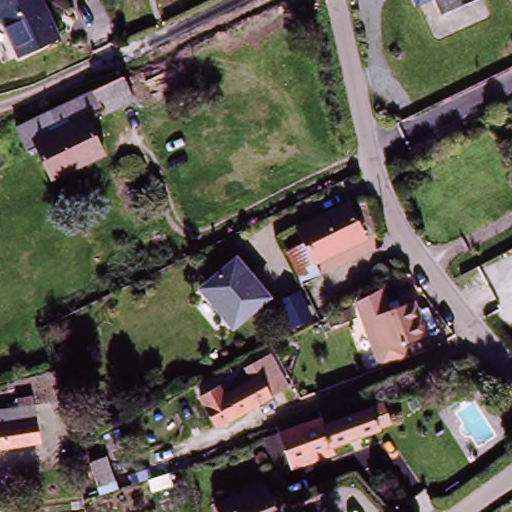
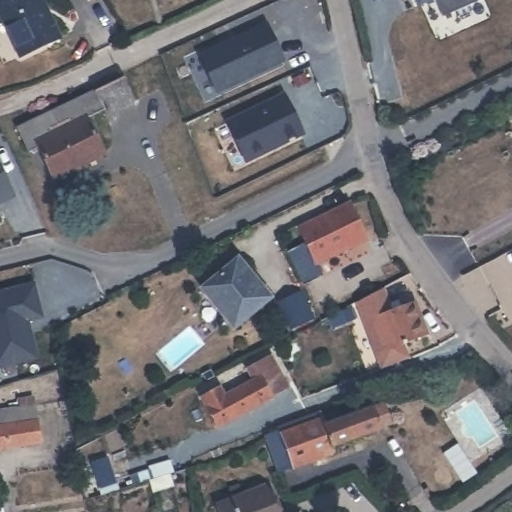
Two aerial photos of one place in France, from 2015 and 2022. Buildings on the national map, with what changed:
unchanged [(0,9),(0,0),(1,0),(42,0),(61,40),(24,58),(0,9)]
unchanged [(418,1),(418,0),(420,0),(418,1)]
new [(231,44),(267,27),(283,62),(217,92),(202,58),(223,48),(231,44)]
unchanged [(52,177),(38,145),(27,149),(17,124),(125,74),(136,99),(106,113),(103,107),(87,115),(105,153),(52,177)]
new [(284,97),(303,135),(281,145),(272,149),(272,150),(247,162),(228,124),(284,97)]
new [(0,204),(0,165),(15,197),(0,204)]
unchanged [(327,276),(316,256),(311,247),(308,241),(319,236),(360,217),(376,210),(377,213),(362,221),(377,251),(327,276)]
unchanged [(238,264),(270,303),(233,333),(201,294),(238,264)]
new [(45,318),(30,322),(40,360),(0,370),(0,296),(36,287),(45,318)]
unchanged [(393,315),(403,311),(413,307),(424,335),(389,348),(378,321),(365,326),(357,305),(365,301),(383,291),(393,315)]
unchanged [(196,400),(216,389),(220,396),(256,376),(252,369),(251,367),(267,358),(286,390),(268,399),(212,430),(196,400)]
unchanged [(0,413),(19,410),(17,401),(34,399),(40,446),(0,452),(0,413)]
unchanged [(273,457),(265,436),(280,431),(277,424),(318,409),(319,412),(330,408),(333,418),(383,399),(392,423),(331,446),(333,452),(279,472),(273,457)]
unchanged [(90,465),(105,460),(114,485),(99,490),(90,465)]
unchanged [(256,483),(267,512),(215,512),(211,500),(256,483)]
unchanged [(0,512),(0,510),(5,509),(5,512),(0,512)]

